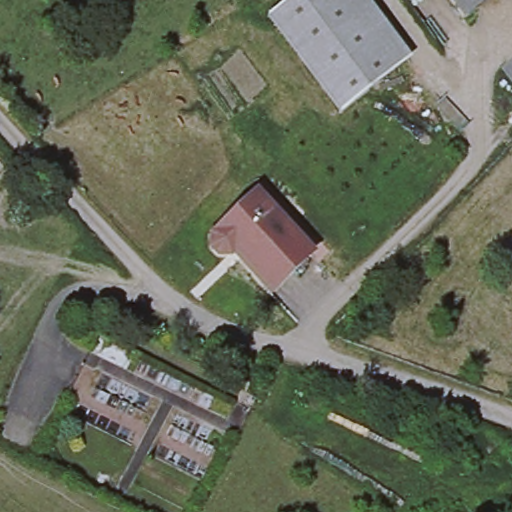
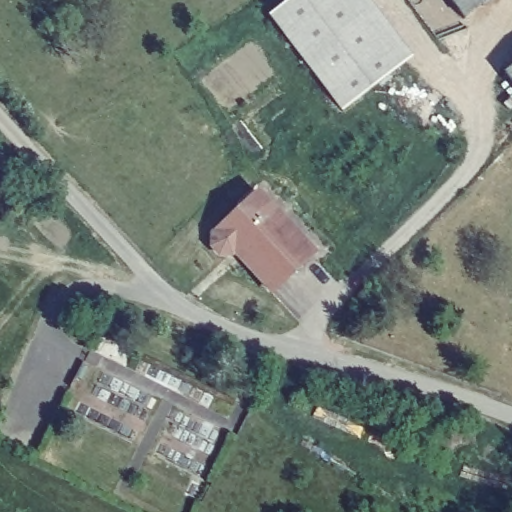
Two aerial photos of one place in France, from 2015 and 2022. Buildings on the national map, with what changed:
unchanged [(346,109),(269,12),(286,0),(374,0),(418,56),(346,109)]
unchanged [(459,20),(444,0),(486,0),(459,20)]
unchanged [(506,69),(512,65),(512,78),(506,69)]
unchanged [(238,260),(242,257),(236,250),(228,257),(217,256),(211,249),(211,238),(241,209),(254,196),(266,209),(311,256),(270,294),(238,260)]

